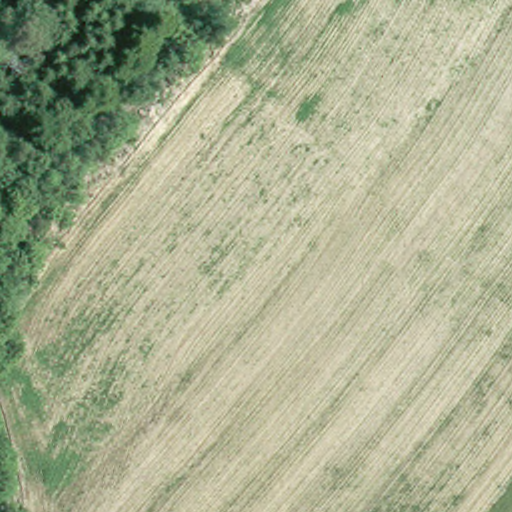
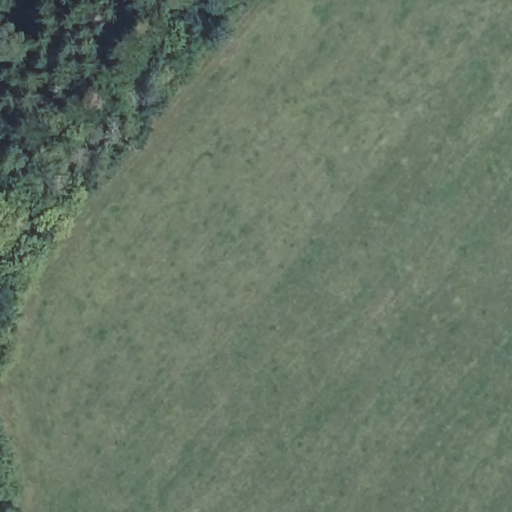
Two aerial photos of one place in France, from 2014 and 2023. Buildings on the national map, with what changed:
[]

